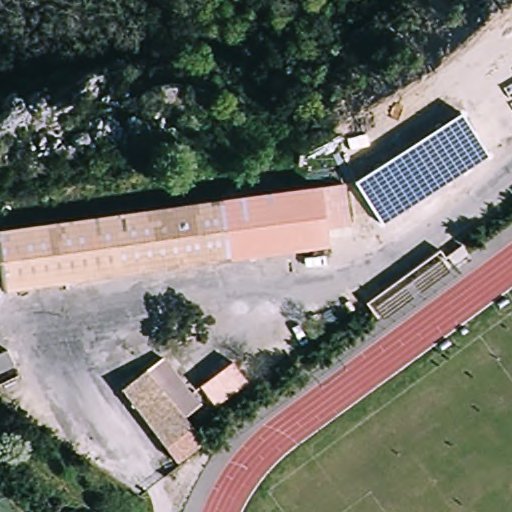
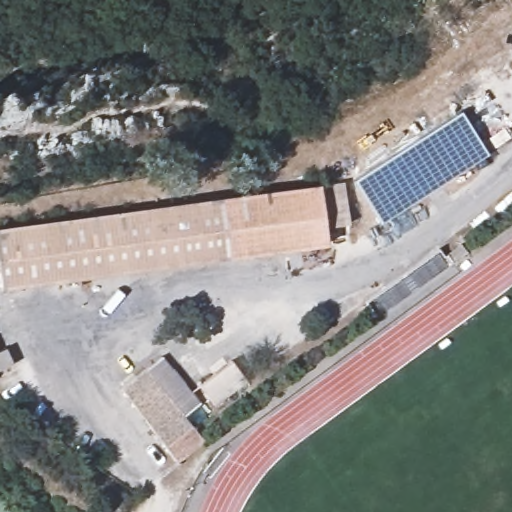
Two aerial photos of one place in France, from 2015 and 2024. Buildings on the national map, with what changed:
unchanged [(383,223),(355,181),(460,113),(486,154),(383,223)]
unchanged [(324,226),(318,187),(343,186),(347,225),(324,226)]
unchanged [(318,187),(326,246),(0,289),(0,285),(0,230),(318,187)]
unchanged [(439,259),(448,272),(383,320),(373,306),(439,259)]
unchanged [(5,349),(12,365),(0,371),(0,351),(5,349)]
unchanged [(160,352),(199,401),(183,413),(202,437),(176,458),(118,385),(160,352)]

